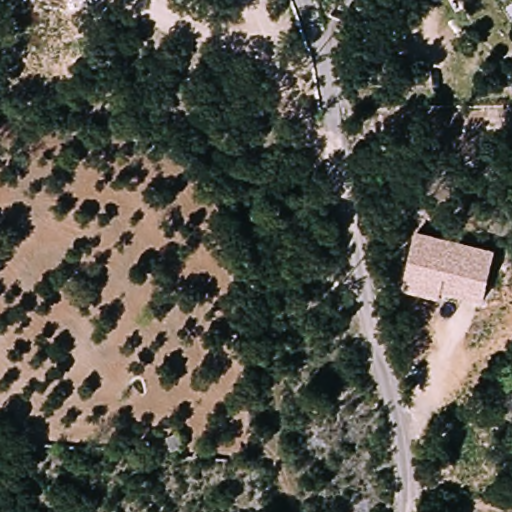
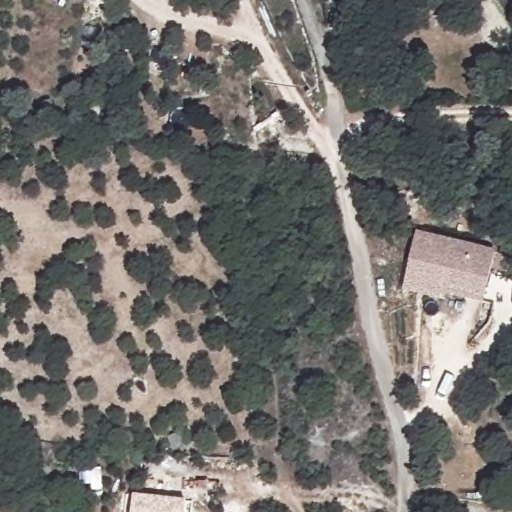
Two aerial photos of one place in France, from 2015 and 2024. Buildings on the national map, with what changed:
unchanged [(483,304),(441,295),(439,301),(402,293),(417,234),(495,251),(483,304)]
new [(186,500),(185,512),(132,512),(134,495),(186,500)]

